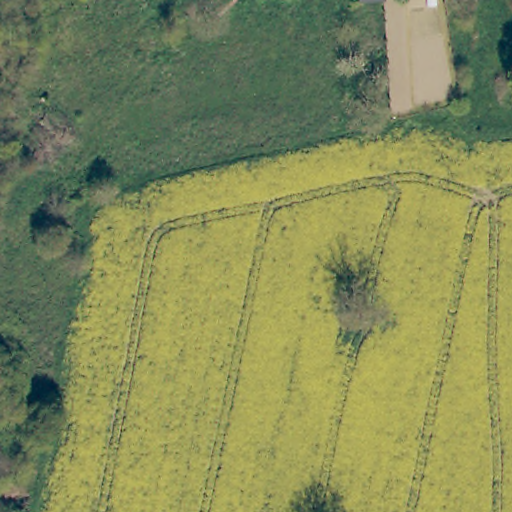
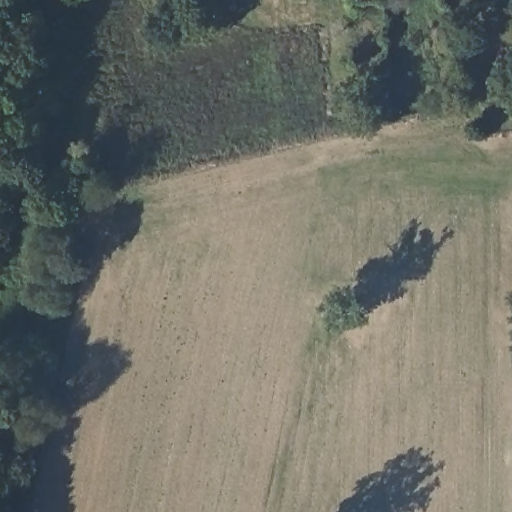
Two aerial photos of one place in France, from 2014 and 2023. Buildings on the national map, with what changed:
unchanged [(365,0),(377,0),(365,1),(365,0)]

